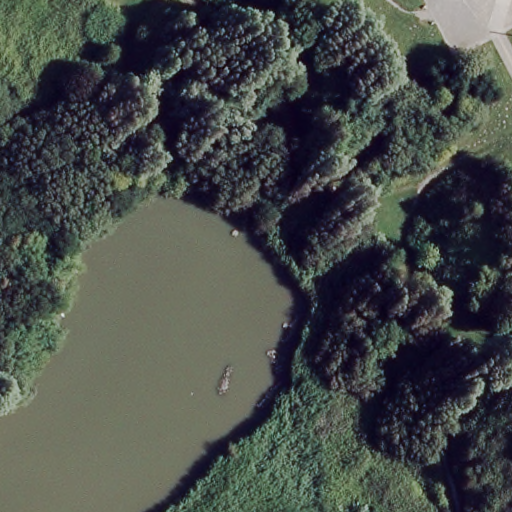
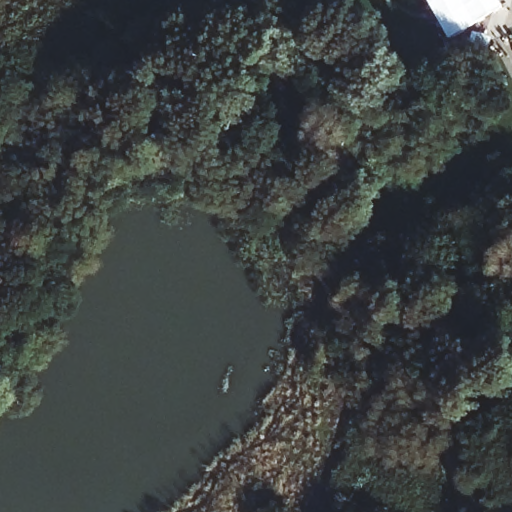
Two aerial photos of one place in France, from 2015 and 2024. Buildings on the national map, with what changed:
new [(448,41),(425,0),(499,0),(504,9),(448,41)]

